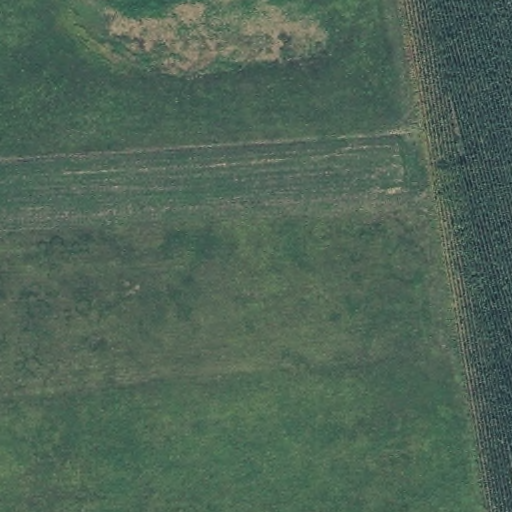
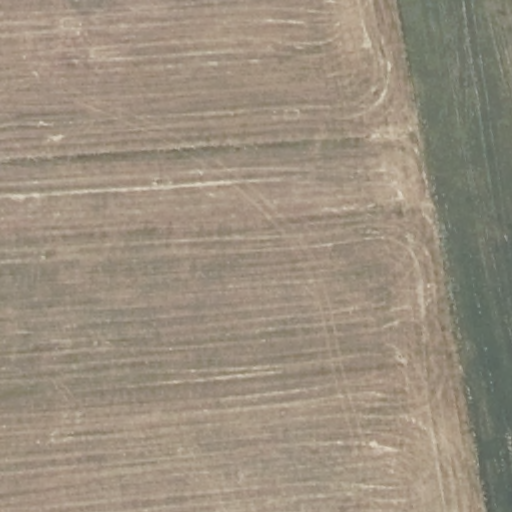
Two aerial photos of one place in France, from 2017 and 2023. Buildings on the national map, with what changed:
[]

